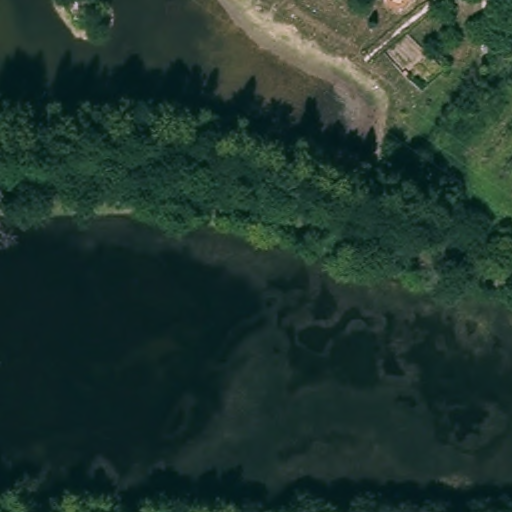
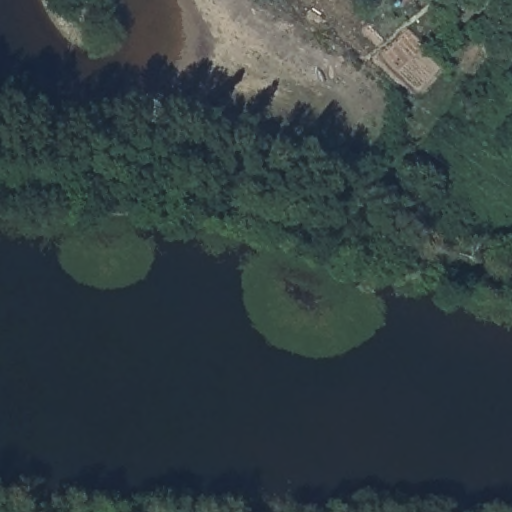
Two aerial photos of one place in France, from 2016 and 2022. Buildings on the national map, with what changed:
unchanged [(508,0),(512,0),(512,3),(508,0)]

